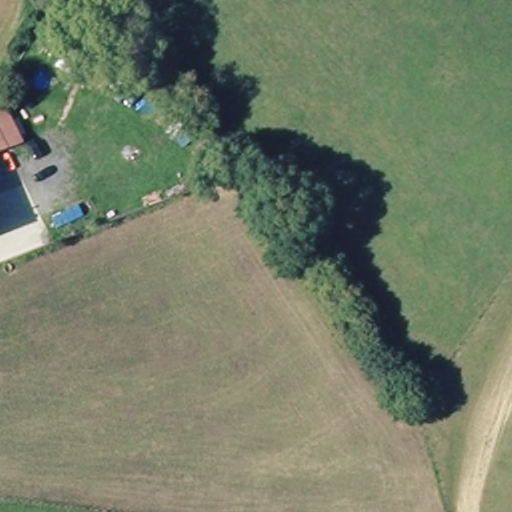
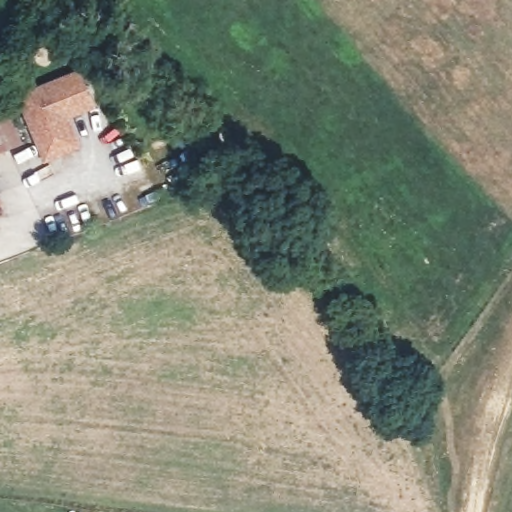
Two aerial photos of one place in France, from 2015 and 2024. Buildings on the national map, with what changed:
new [(97,109),(72,119),(82,146),(43,161),(16,94),(81,66),(97,109)]
unchanged [(1,151),(0,151),(0,150),(1,151)]

